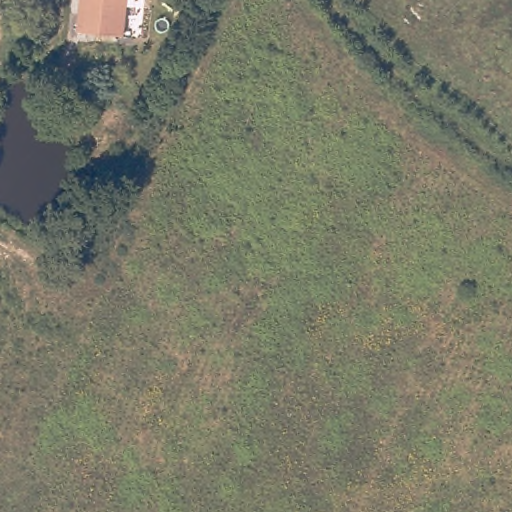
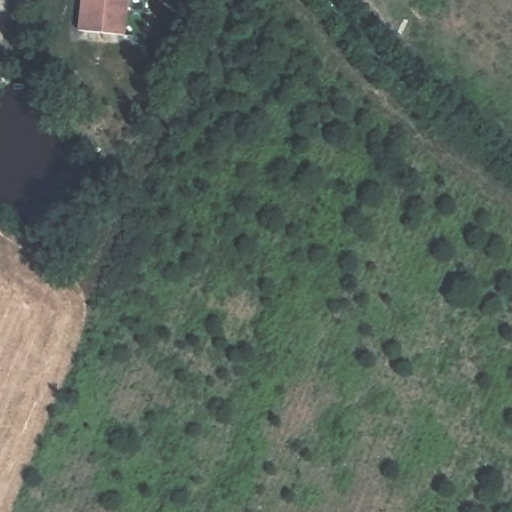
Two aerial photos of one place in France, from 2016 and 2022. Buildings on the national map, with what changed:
unchanged [(78,27),(81,0),(127,0),(124,31),(78,27)]

